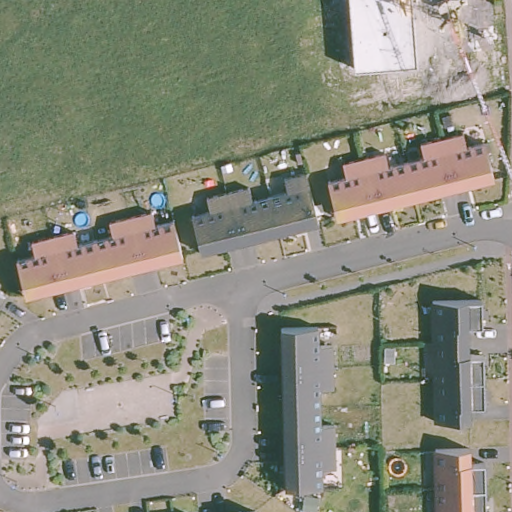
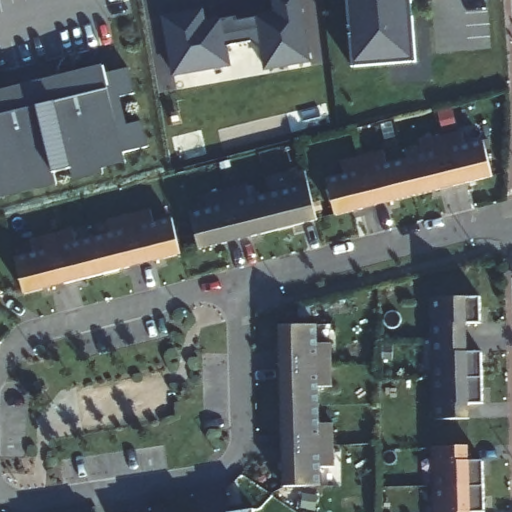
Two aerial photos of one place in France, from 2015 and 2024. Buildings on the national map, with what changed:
new [(229,50),(232,67),(172,77),(162,17),(204,9),(207,20),(257,18),(274,12),(272,0),(301,0),(312,64),(265,72),(260,44),(229,50)]
unchanged [(402,2),(407,2),(409,18),(413,17),(417,63),(352,68),(347,0),(402,0),(402,2)]
new [(10,89),(65,75),(65,71),(67,67),(68,64),(75,61),(77,72),(103,65),(105,74),(128,68),(135,94),(120,97),(127,125),(142,122),(148,147),(124,153),(126,162),(102,168),(103,172),(73,180),(70,169),(55,173),(57,184),(0,198),(0,91),(10,89)]
unchanged [(493,177),(453,187),(415,196),(375,206),(336,216),(327,180),(345,175),(341,162),(384,151),(387,165),(423,156),(420,142),(462,132),(466,145),(484,141),(493,177)]
unchanged [(280,230),(240,240),(200,250),(191,214),(209,209),(205,196),(248,185),(252,199),(288,190),(285,176),(306,171),(318,220),(280,230)]
unchanged [(182,255),(143,264),(104,273),(64,283),(25,293),(15,257),(33,253),(30,240),(73,229),(77,242),(112,233),(109,220),(152,209),(155,222),(173,218),(182,255)]
unchanged [(3,292),(0,296),(0,290),(3,292)]
unchanged [(467,325),(467,338),(468,352),(482,352),(483,378),(483,405),(469,405),(469,419),(435,420),(432,299),(481,297),(482,324),(467,325)]
unchanged [(283,447),(282,406),(281,365),(280,326),(317,325),(317,342),(331,342),(332,386),(318,387),(320,423),(333,423),(335,467),(320,467),(321,486),(284,487),(283,447)]
unchanged [(483,461),(484,487),(485,512),(436,512),(434,447),(468,447),(469,462),(483,461)]
unchanged [(254,512),(237,512),(253,510),(254,512)]

